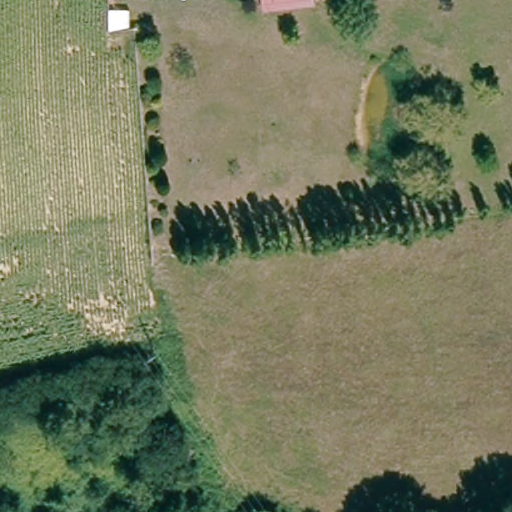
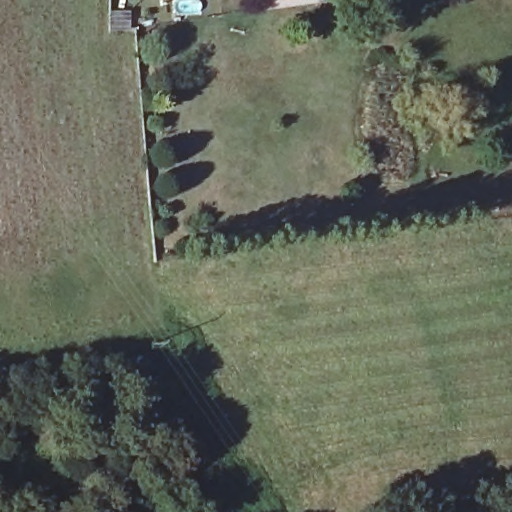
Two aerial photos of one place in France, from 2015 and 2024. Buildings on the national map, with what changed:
unchanged [(266,0),(317,0),(318,5),(268,12),(266,0)]

